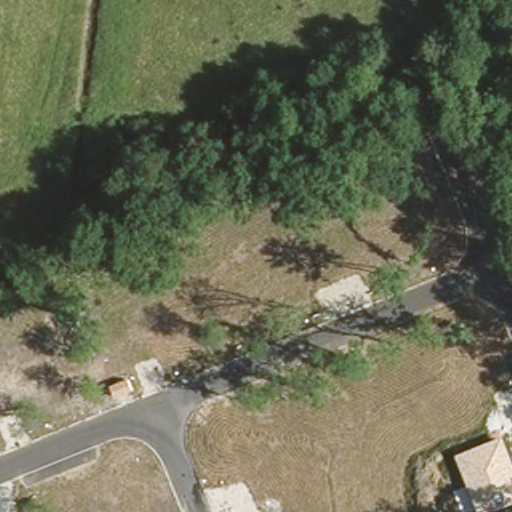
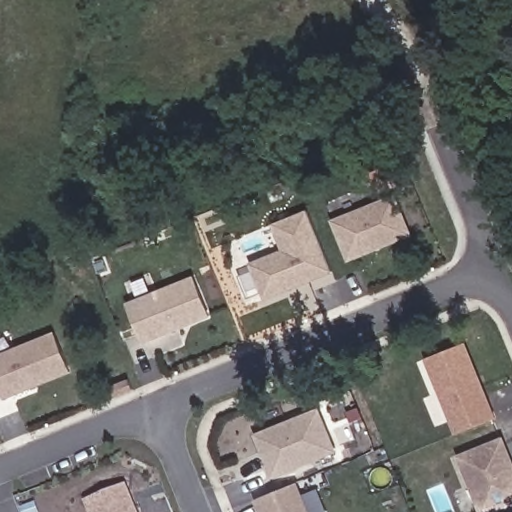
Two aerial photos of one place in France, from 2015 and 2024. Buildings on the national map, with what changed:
new [(346,264),(328,220),(389,196),(407,240),(346,264)]
new [(305,215),(330,276),(261,303),(247,269),(281,255),(270,229),(305,215)]
new [(126,307),(191,281),(206,320),(140,345),(126,307)]
new [(0,353),(49,333),(65,371),(0,398),(0,397),(0,353)]
new [(461,341),(491,416),(453,431),(423,356),(461,341)]
new [(110,387),(127,380),(131,390),(113,397),(110,387)]
new [(317,408),(334,449),(271,475),(254,434),(317,408)]
unchanged [(512,461),(512,507),(498,512),(478,512),(456,455),(503,437),(512,461)]
new [(138,512),(88,512),(83,499),(128,482),(138,512)]
new [(308,512),(259,512),(254,499),(296,482),(308,512)]

